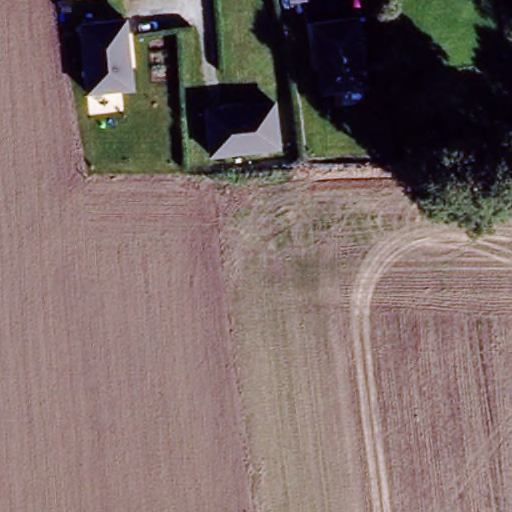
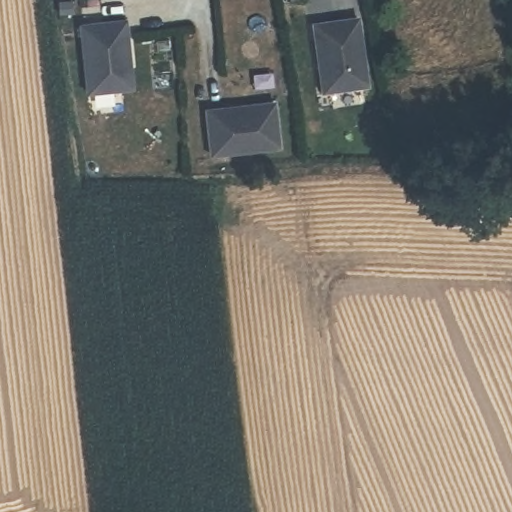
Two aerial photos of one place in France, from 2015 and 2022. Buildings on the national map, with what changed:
unchanged [(354,20),(367,90),(324,96),(313,27),(354,20)]
unchanged [(89,94),(81,22),(130,21),(135,87),(89,94)]
unchanged [(281,152),(212,161),(211,106),(278,107),(281,152)]

